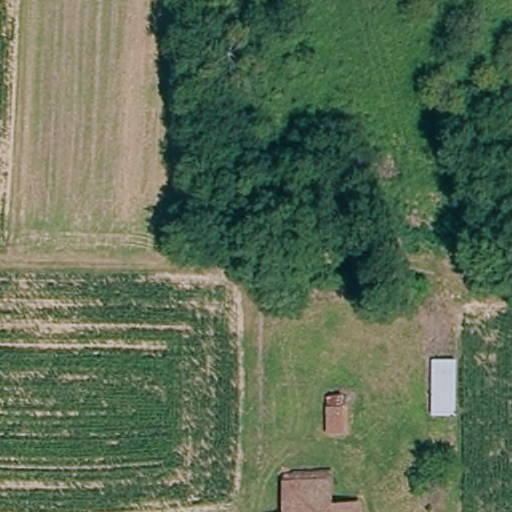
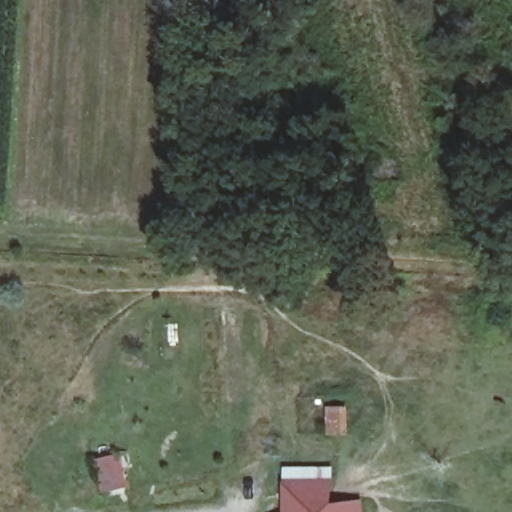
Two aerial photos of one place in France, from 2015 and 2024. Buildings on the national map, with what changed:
demolished [(455,360),(452,417),(429,415),(431,360),(455,360)]
unchanged [(330,410),(332,435),(316,436),(315,410),(330,410)]
unchanged [(285,511),(284,485),(331,485),(332,507),(358,506),(359,512),(270,512),(285,511)]

